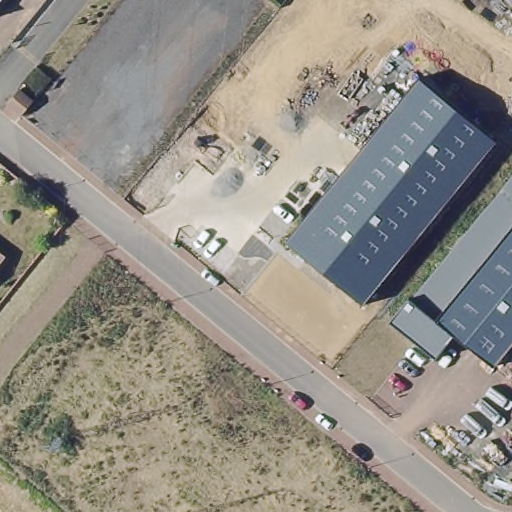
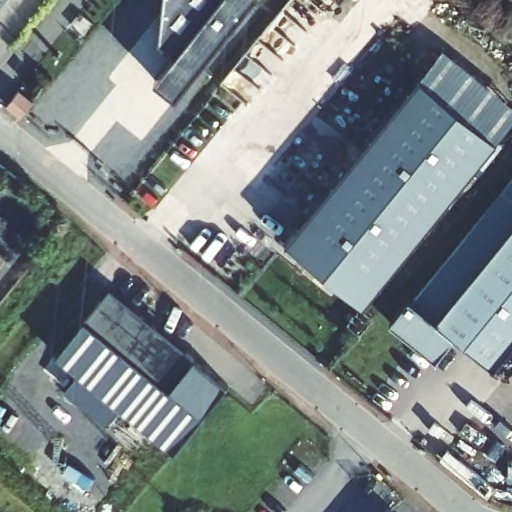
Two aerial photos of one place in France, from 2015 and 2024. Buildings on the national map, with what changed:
unchanged [(0,2),(0,0),(2,0),(0,2)]
new [(163,74),(183,48),(166,34),(169,0),(252,0),(181,88),(163,74)]
new [(444,47),(512,103),(512,126),(499,142),(419,77),(444,47)]
unchanged [(499,142),(363,306),(285,240),(419,77),(499,142)]
unchanged [(22,118),(8,105),(19,90),(34,102),(22,118)]
unchanged [(494,367),(454,335),(437,357),(389,320),(407,297),(411,300),(512,177),(512,344),(494,367)]
unchanged [(0,271),(0,256),(8,262),(0,271)]
new [(230,380),(174,450),(121,405),(109,420),(65,387),(81,368),(59,353),(111,282),(230,380)]

